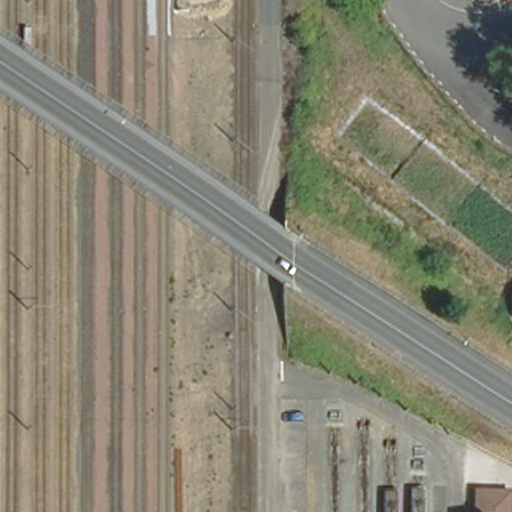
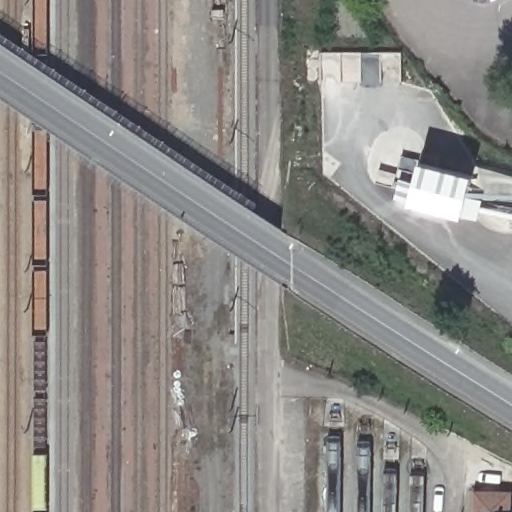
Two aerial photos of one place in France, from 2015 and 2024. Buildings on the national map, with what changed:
new [(482,199),(477,219),(409,202),(419,163),(472,176),(467,195),(482,199)]
unchanged [(507,512),(474,512),(475,488),(508,489),(507,512)]

